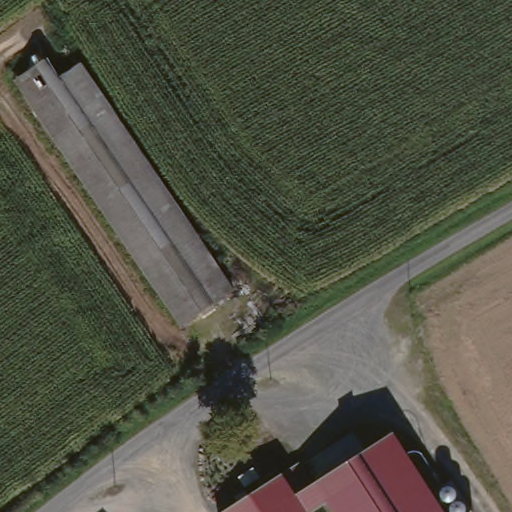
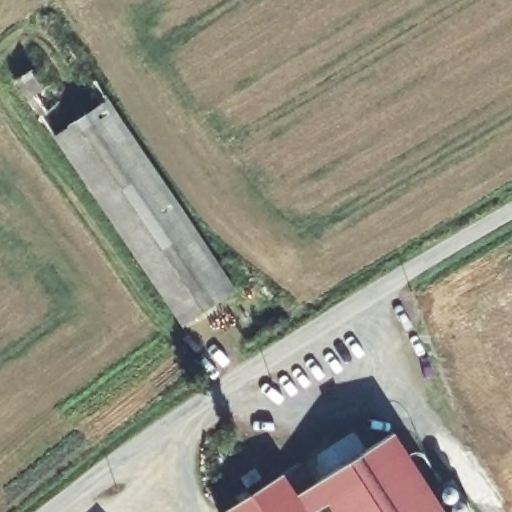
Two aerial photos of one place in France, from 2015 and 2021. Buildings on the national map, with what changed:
unchanged [(73,35),(238,281),(185,317),(20,72),(73,35)]
unchanged [(317,512),(224,512),(288,472),(300,463),(314,485),(397,432),(448,512),(337,512),(331,503),(317,512)]
unchanged [(248,487),(242,478),(257,469),(263,478),(248,487)]

